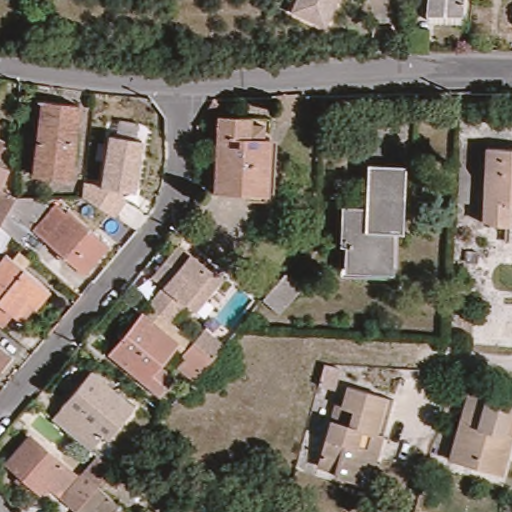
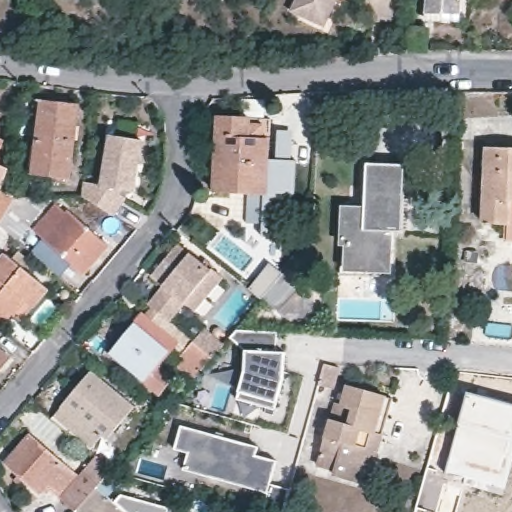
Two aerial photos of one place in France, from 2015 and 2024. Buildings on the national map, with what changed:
unchanged [(290,9),(294,0),(336,0),(324,24),(290,9)]
demolished [(430,15),(431,0),(465,0),(464,17),(430,15)]
unchanged [(82,105),(73,180),(37,175),(47,101),(82,105)]
unchanged [(273,197),(247,196),(247,189),(213,187),(217,112),(247,114),(247,121),(261,121),(261,135),(267,135),(276,136),(273,197)]
unchanged [(104,144),(96,143),(98,121),(107,123),(130,126),(128,148),(104,144)]
unchanged [(5,142),(0,156),(0,140),(5,142)]
unchanged [(505,225),(483,223),(486,149),(512,150),(512,201),(508,201),(507,225),(505,225)]
unchanged [(134,150),(154,157),(137,208),(98,194),(108,166),(127,173),(134,150)]
unchanged [(12,169),(4,190),(20,198),(55,197),(20,242),(12,236),(0,257),(0,164),(12,169)]
unchanged [(377,169),(408,171),(405,238),(398,238),(396,273),(355,271),(356,249),(352,249),(353,214),(375,215),(377,169)]
unchanged [(470,177),(468,204),(453,204),(454,177),(470,177)]
unchanged [(87,275),(38,232),(61,206),(70,214),(72,212),(112,246),(87,275)]
new [(44,241),(72,266),(60,280),(32,256),(44,241)]
unchanged [(189,245),(220,271),(198,298),(188,290),(169,312),(147,294),(189,245)]
unchanged [(25,322),(19,316),(17,315),(5,329),(0,324),(0,267),(10,256),(15,260),(20,253),(32,262),(27,269),(45,284),(52,290),(25,322)]
unchanged [(300,283),(278,307),(262,293),(284,268),(300,283)]
unchanged [(169,380),(159,393),(111,353),(142,316),(175,345),(155,368),(169,380)]
unchanged [(185,359),(180,355),(191,342),(203,328),(211,336),(222,345),(212,358),(193,379),(179,367),(185,359)]
new [(235,330),(280,333),(279,352),(288,352),(285,378),(276,409),(238,399),(246,371),(244,351),(229,338),(235,330)]
unchanged [(13,358),(0,374),(0,346),(13,358)]
unchanged [(97,430),(100,434),(88,446),(56,419),(66,408),(67,404),(95,372),(139,408),(120,430),(107,419),(97,430)]
unchanged [(365,462),(358,481),(334,474),(335,468),(317,464),(331,418),(348,423),(353,408),(342,405),(347,385),(393,399),(384,433),(375,464),(365,462)]
unchanged [(450,458),(468,394),(512,406),(512,433),(511,435),(500,473),(473,465),(450,458)]
new [(182,424),(259,447),(256,456),(277,462),(270,485),(289,490),(283,512),(262,512),(267,494),(184,469),(189,452),(175,448),(182,424)]
unchanged [(80,477),(99,455),(116,470),(101,487),(80,512),(50,485),(43,492),(12,464),(35,438),(80,477)]
unchanged [(512,452),(512,459),(510,459),(512,452)]
unchanged [(101,487),(130,512),(80,512),(101,487)]

